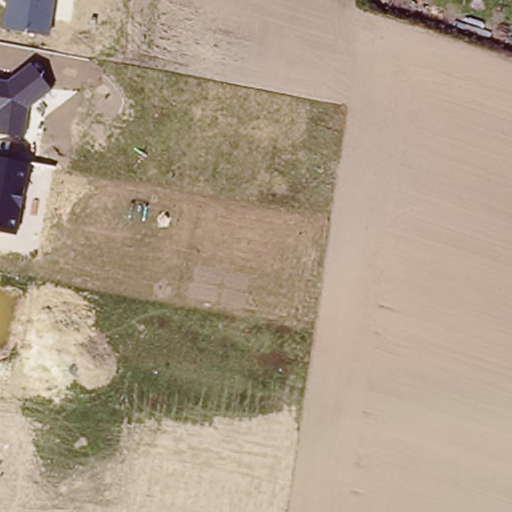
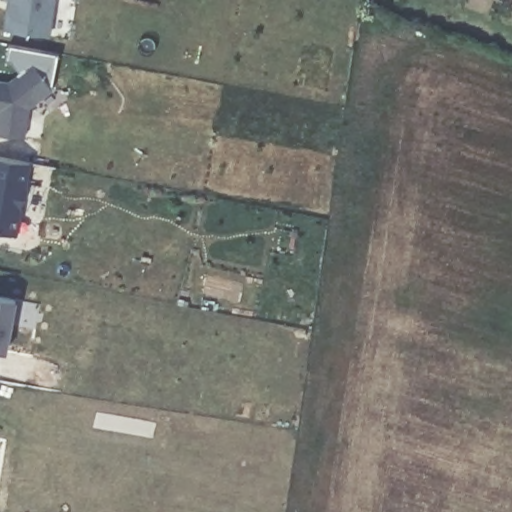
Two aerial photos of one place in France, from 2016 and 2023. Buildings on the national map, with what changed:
unchanged [(55,0),(50,37),(4,29),(8,0),(55,0)]
unchanged [(32,63),(52,90),(27,110),(23,136),(0,133),(0,81),(7,81),(32,63)]
unchanged [(19,235),(0,230),(0,156),(30,161),(19,235)]
new [(0,349),(0,296),(15,299),(5,350),(0,349)]

